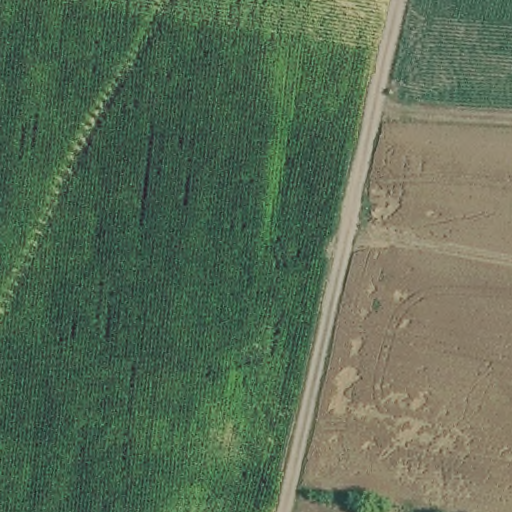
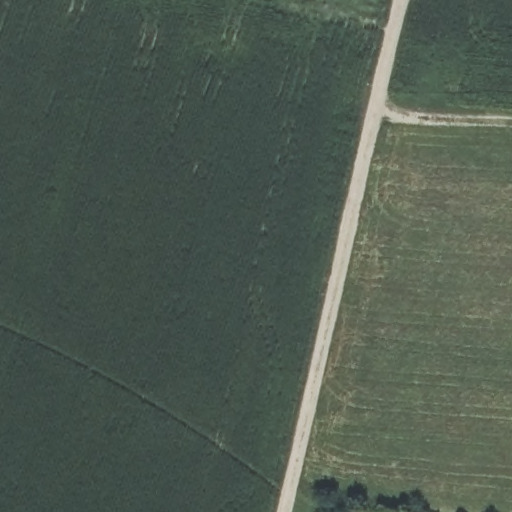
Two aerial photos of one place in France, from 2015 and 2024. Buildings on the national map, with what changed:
[]

